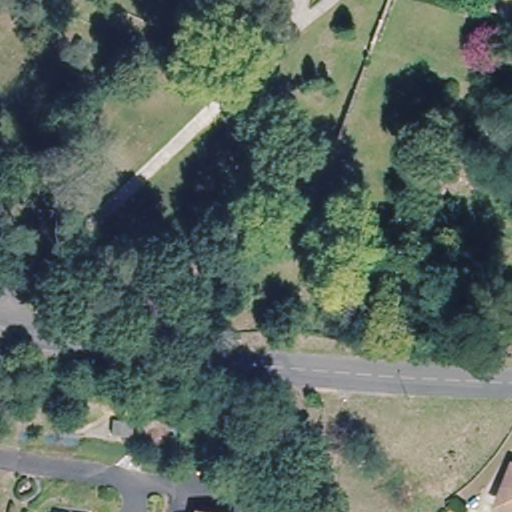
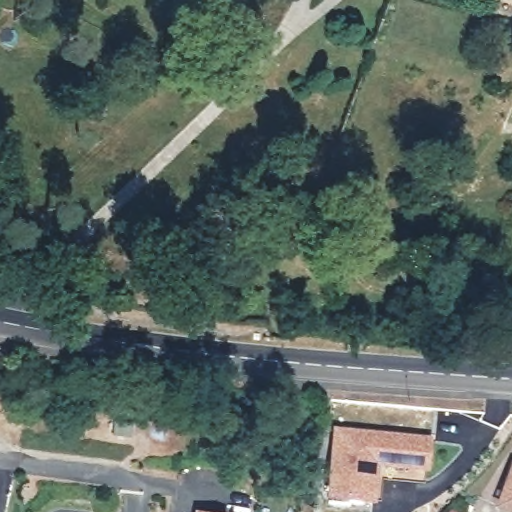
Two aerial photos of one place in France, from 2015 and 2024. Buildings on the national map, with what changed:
new [(432,435),(429,470),(378,465),(374,508),(327,502),(334,426),(432,435)]
unchanged [(512,511),(500,506),(512,475),(512,511)]

